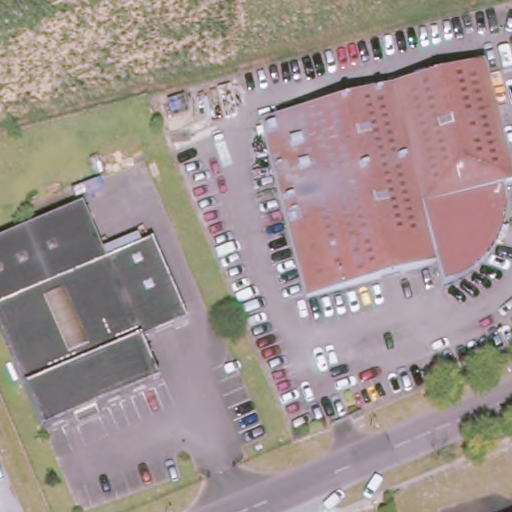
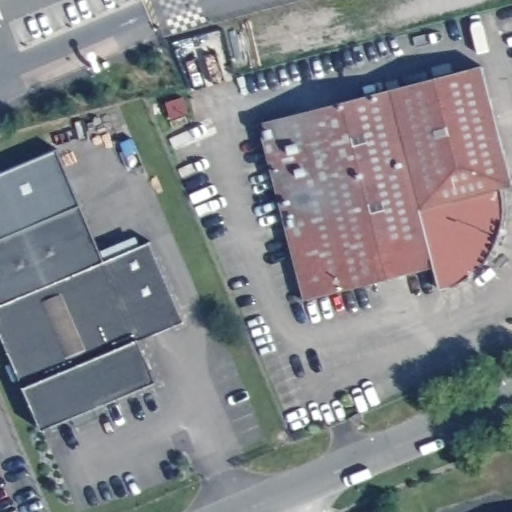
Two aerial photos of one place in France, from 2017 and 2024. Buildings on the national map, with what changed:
unchanged [(259,124),(483,66),(512,184),(512,189),(506,191),(505,204),(504,226),(498,245),(488,261),(476,275),(459,286),(439,294),(433,268),(305,301),(259,124)]
new [(0,238),(0,173),(56,149),(79,204),(0,238)]
unchanged [(103,260),(0,303),(0,238),(79,204),(103,260)]
unchanged [(0,303),(103,260),(151,240),(184,322),(140,341),(156,382),(41,429),(0,328),(0,303)]

